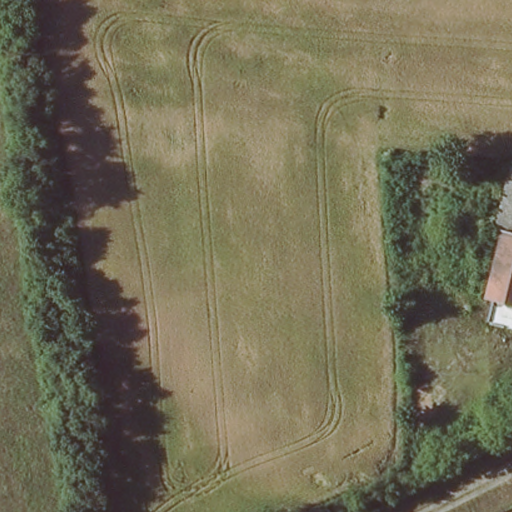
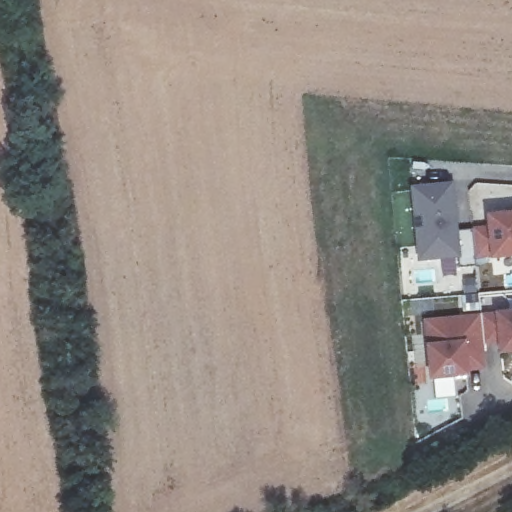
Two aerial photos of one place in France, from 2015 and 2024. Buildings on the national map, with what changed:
new [(410,187),(454,184),(457,232),(471,231),(470,228),(486,226),(485,216),(512,213),(512,257),(491,259),(475,260),(476,267),(460,268),(459,258),(418,262),(410,187)]
demolished [(489,298),(503,233),(512,236),(512,304),(489,298)]
new [(463,315),(460,296),(477,294),(480,314),(494,313),(512,312),(512,354),(498,355),(497,347),(483,348),(485,370),(468,372),(469,378),(455,379),(455,398),(436,399),(436,382),(428,382),(426,345),(423,320),(463,315)]

